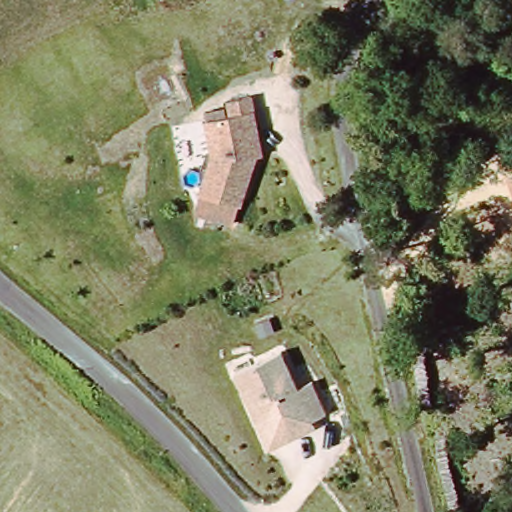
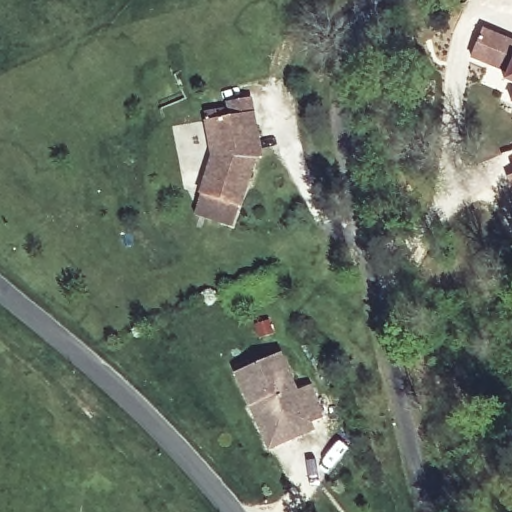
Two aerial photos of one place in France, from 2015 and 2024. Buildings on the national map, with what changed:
new [(482,27),(512,39),(512,56),(504,73),(469,58),(482,27)]
new [(504,73),(512,56),(512,85),(502,80),(504,73)]
new [(509,102),(512,93),(512,104),(509,102)]
unchanged [(201,190),(213,154),(209,117),(233,113),(231,100),(253,96),(255,112),(264,156),(256,157),(241,205),(201,190)]
unchanged [(508,174),(512,173),(512,185),(508,174)]
unchanged [(272,449),(253,405),(238,372),(284,352),(301,390),(314,384),(328,416),(314,422),(317,429),(272,449)]

